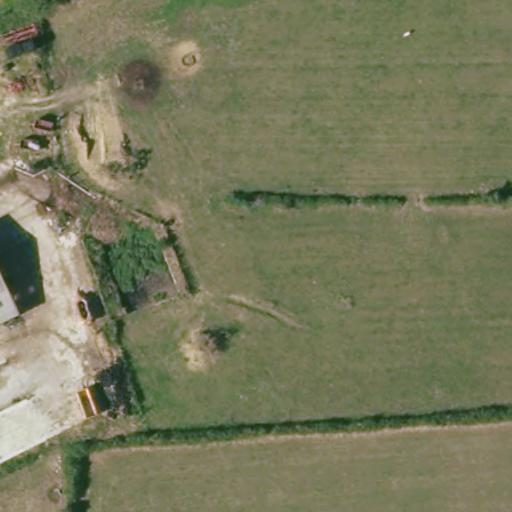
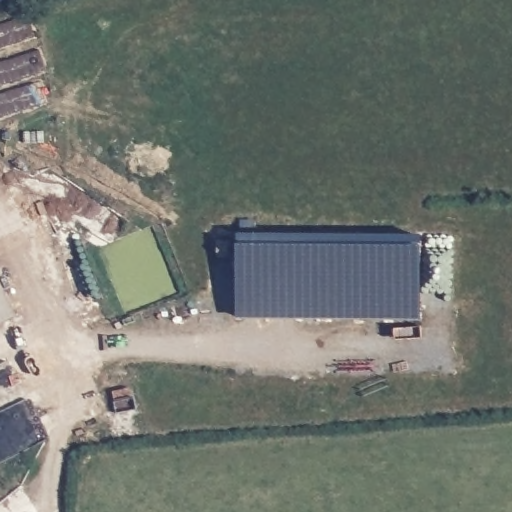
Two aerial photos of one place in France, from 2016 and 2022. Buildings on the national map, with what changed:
new [(240,227),(421,230),(420,312),(240,310),(240,227)]
unchanged [(18,313),(0,323),(0,277),(18,313)]

